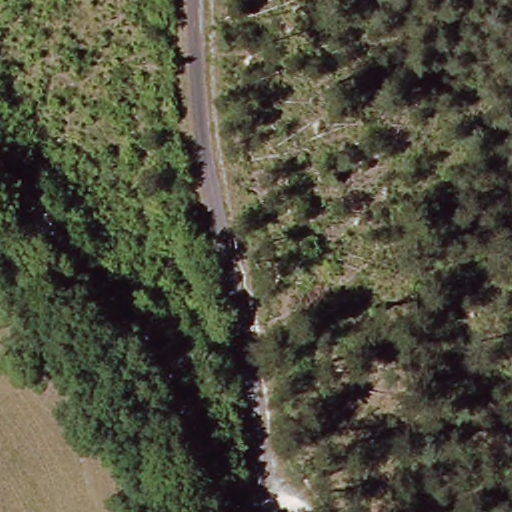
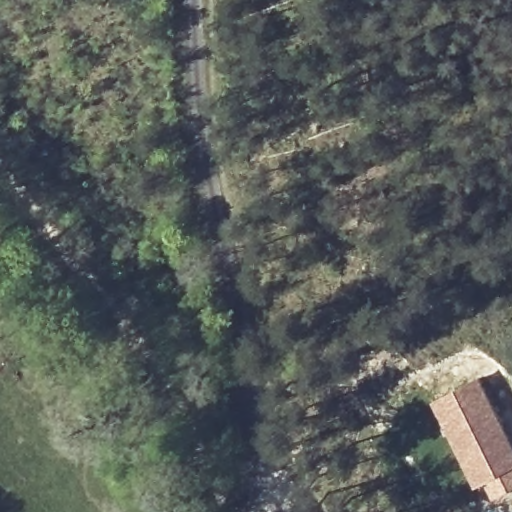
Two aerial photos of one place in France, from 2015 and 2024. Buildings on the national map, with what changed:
new [(475,380),(512,451),(512,486),(492,496),(482,479),(473,484),(431,403),(475,380)]

